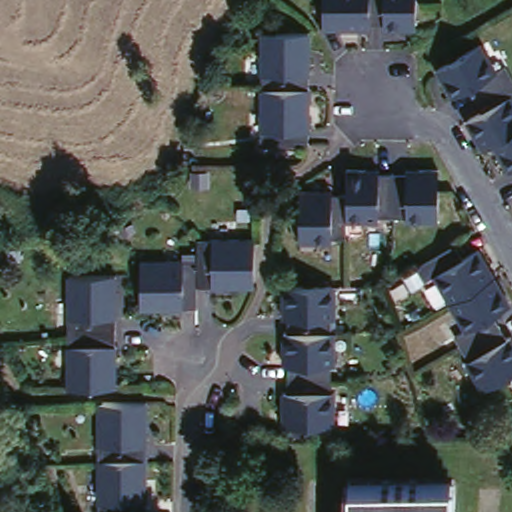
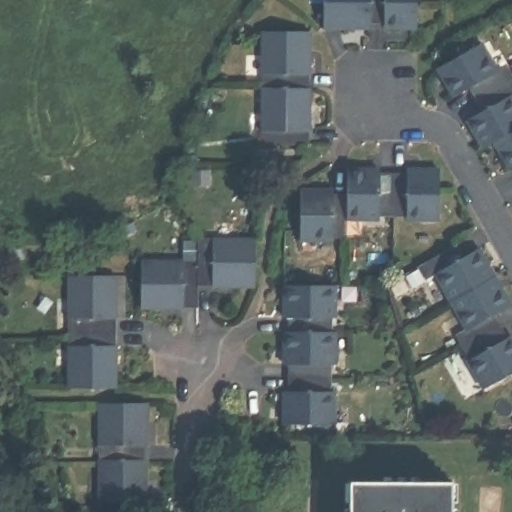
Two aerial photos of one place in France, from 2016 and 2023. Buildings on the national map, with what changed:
unchanged [(368,0),(368,25),(367,29),(350,29),(321,29),(321,0),(368,0)]
unchanged [(416,0),(416,29),(396,29),(382,29),(383,25),(368,25),(368,0),(416,0)]
unchanged [(308,33),(308,63),(308,89),(261,90),(261,35),(308,33)]
unchanged [(453,103),(445,91),(435,74),(477,48),(496,77),(506,71),(512,81),(512,84),(475,106),(467,94),(453,103)]
unchanged [(512,100),(510,101),(512,104),(512,139),(497,147),(484,156),(476,142),(467,128),(482,118),(475,106),(512,84),(512,100)]
unchanged [(262,149),(261,90),(308,89),(308,120),(309,148),(262,149)]
unchanged [(497,147),(512,139),(512,171),(507,162),(497,147)]
unchanged [(391,218),(374,217),(373,222),(341,222),(341,196),(341,171),(366,171),(375,170),(376,174),(391,175),(391,218)]
unchanged [(405,175),(405,171),(416,171),(440,171),(438,222),(404,222),(404,218),(391,218),(391,175),(405,175)]
unchanged [(341,222),(341,239),(327,240),(327,243),(295,243),(296,192),(321,193),(326,193),(326,196),(341,196),(341,222)]
unchanged [(197,263),(197,242),(255,242),(255,287),(224,287),(197,287),(197,263)]
unchanged [(461,247),(467,261),(482,252),(487,260),(500,282),(455,307),(438,277),(429,282),(422,269),(461,247)]
unchanged [(197,263),(197,287),(197,310),(169,310),(140,310),(140,263),(197,263)]
unchanged [(69,327),(69,277),(116,277),(116,297),(116,327),(69,327)]
unchanged [(470,334),(455,307),(500,282),(511,301),(512,303),(512,310),(498,318),(506,331),(468,352),(461,339),(470,334)]
unchanged [(288,324),(288,317),(285,317),(285,287),(336,287),(336,320),(332,320),(332,332),(288,332),(288,324)]
unchanged [(69,327),(116,327),(117,364),(117,387),(70,387),(69,327)]
unchanged [(473,368),(477,367),(468,352),(506,331),(512,342),(512,381),(488,395),(473,368)]
unchanged [(332,332),(336,333),(336,361),(332,361),(332,376),(288,377),(288,369),(288,361),(285,361),(285,332),(288,332),(332,332)]
unchanged [(332,376),(332,392),(335,392),(335,425),(284,425),(285,391),(288,391),(288,385),(288,377),(332,376)]
unchanged [(98,462),(98,402),(147,402),(146,436),(146,462),(98,462)]
unchanged [(146,462),(146,486),(146,512),(98,512),(98,462),(146,462)]
unchanged [(350,482),(452,482),(452,512),(350,512),(350,482)]

